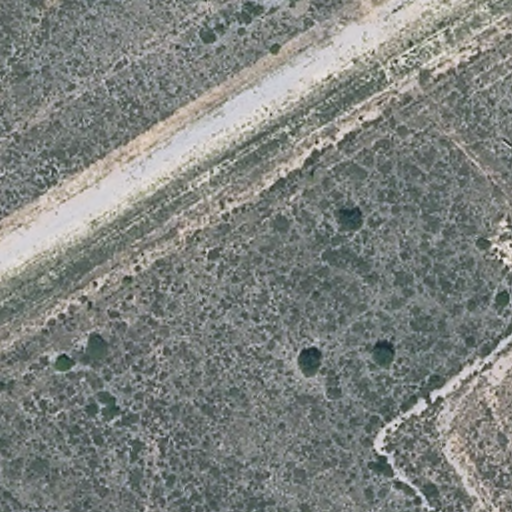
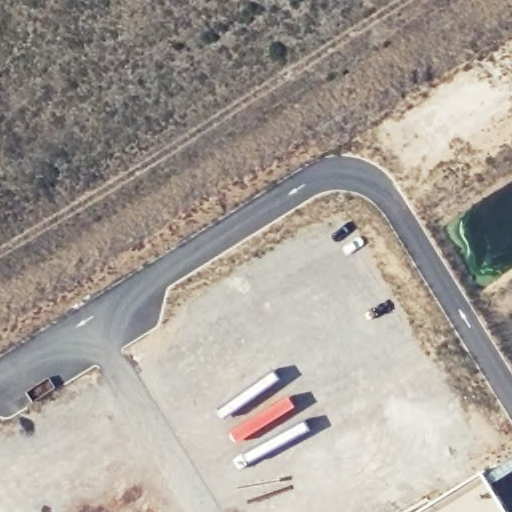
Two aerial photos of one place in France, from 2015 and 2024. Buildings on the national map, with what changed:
new [(512,512),(417,512),(486,469),(512,512)]

